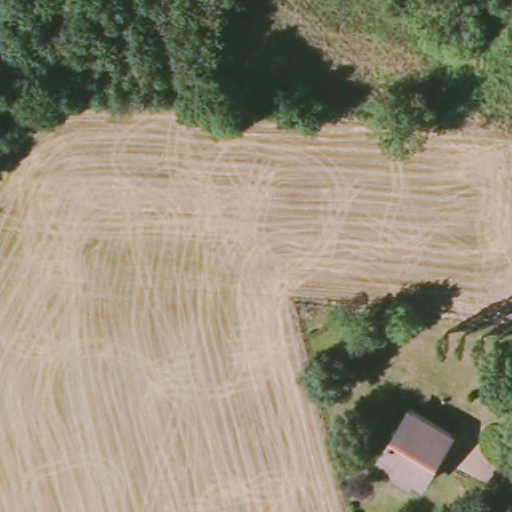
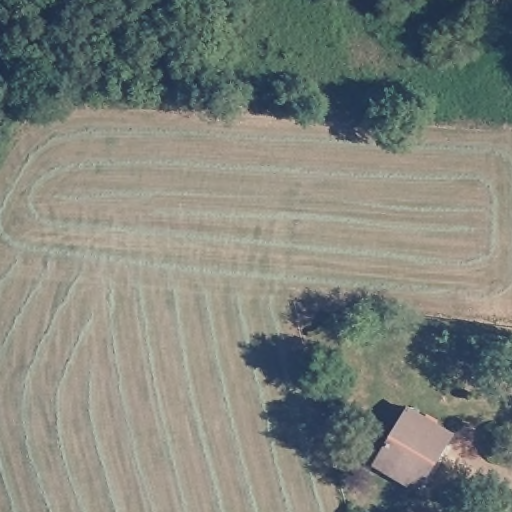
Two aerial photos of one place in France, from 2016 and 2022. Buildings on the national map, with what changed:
unchanged [(372,467),(381,452),(408,406),(449,431),(419,481),(406,471),(396,483),(372,467)]

